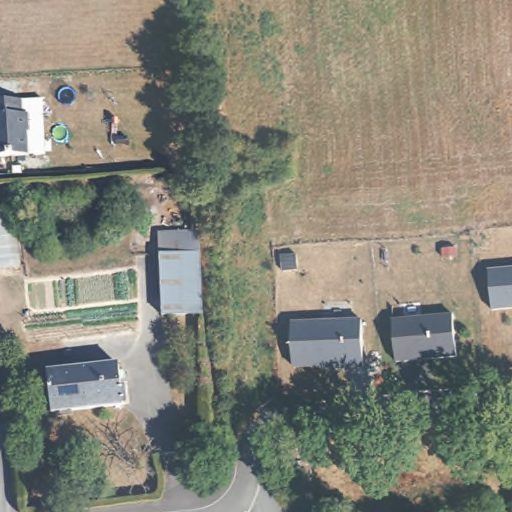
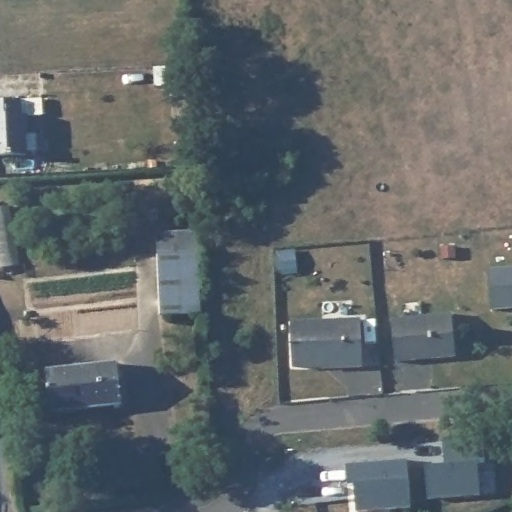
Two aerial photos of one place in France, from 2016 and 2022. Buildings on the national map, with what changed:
unchanged [(19,101),(20,116),(26,116),(26,133),(24,134),(26,157),(0,158),(0,102),(19,101)]
unchanged [(11,201),(20,263),(0,266),(0,203),(11,201)]
unchanged [(157,320),(152,235),(196,231),(201,314),(157,320)]
unchanged [(490,271),(512,270),(512,309),(492,311),(490,271)]
unchanged [(452,312),(456,358),(396,363),(392,319),(452,312)]
unchanged [(362,320),(363,367),(346,367),(346,365),(293,367),(292,323),(362,320)]
unchanged [(117,367),(122,407),(52,415),(48,374),(117,367)]
new [(426,466),(445,465),(443,440),(483,437),(485,462),(478,462),(481,494),(428,498),(426,466)]
new [(411,507),(357,511),(355,486),(348,486),(347,463),(407,458),(411,507)]

